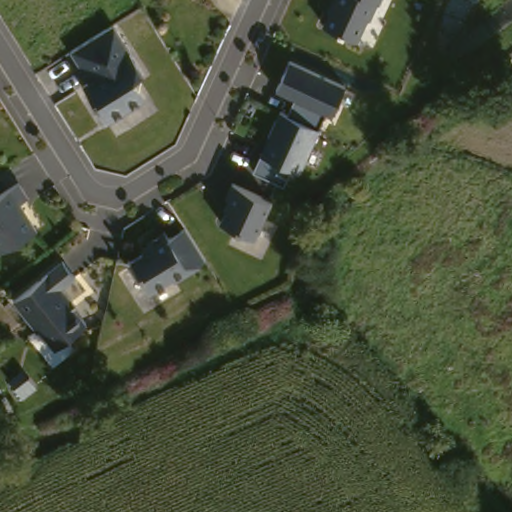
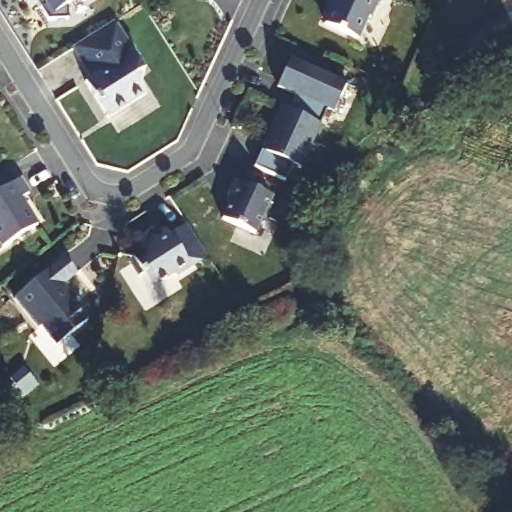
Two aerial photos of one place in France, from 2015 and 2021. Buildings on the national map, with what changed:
new [(64,14),(44,14),(36,2),(35,0),(64,0),(64,14)]
unchanged [(327,0),(382,0),(361,40),(318,18),(327,0)]
unchanged [(113,27),(144,73),(134,79),(144,99),(109,119),(86,85),(94,79),(74,50),(113,27)]
unchanged [(346,85),(336,115),(326,112),(302,171),(290,165),(285,181),(255,166),(278,109),(287,113),(294,99),(276,89),(290,60),(346,85)]
unchanged [(227,207),(224,203),(231,183),(276,200),(259,238),(223,220),(227,207)]
unchanged [(31,198),(23,204),(40,230),(5,252),(0,244),(0,198),(21,184),(31,198)]
unchanged [(149,253),(142,243),(162,232),(165,239),(183,229),(203,262),(180,276),(177,274),(153,288),(129,263),(149,253)]
unchanged [(60,262),(73,276),(61,289),(88,319),(57,345),(15,303),(60,262)]

